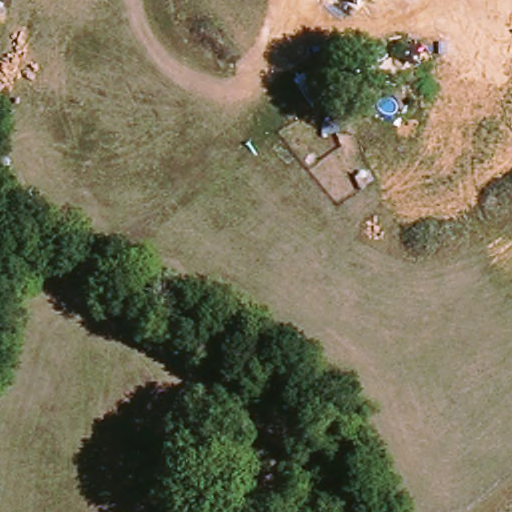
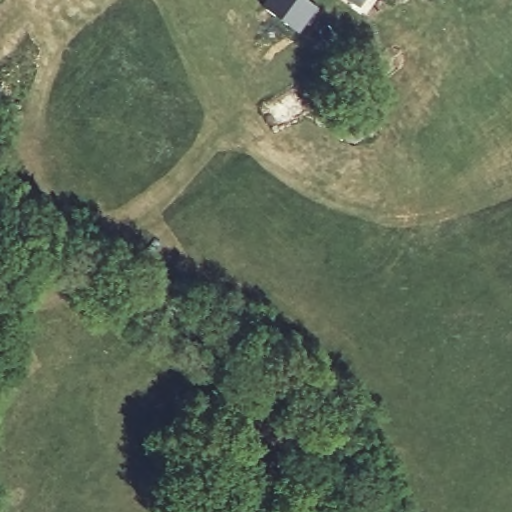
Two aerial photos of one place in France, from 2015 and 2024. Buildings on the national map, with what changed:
new [(298,32),(262,5),(266,0),(307,0),(317,7),(298,32)]
unchanged [(347,0),(361,0),(356,6),(347,0)]

